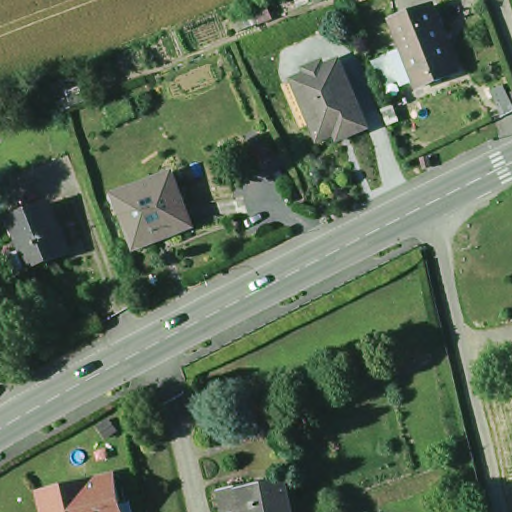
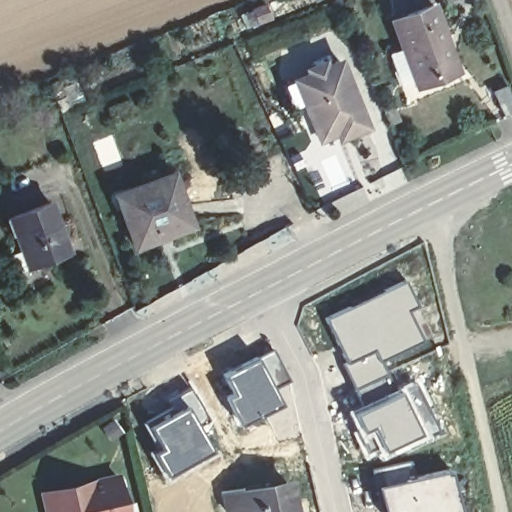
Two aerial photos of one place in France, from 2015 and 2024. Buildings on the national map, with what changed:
unchanged [(450,44),(462,77),(446,83),(443,76),(423,83),(401,21),(443,5),(457,42),(450,44)]
unchanged [(365,122),(351,128),(348,122),(318,134),(295,72),(340,55),(365,122)]
unchanged [(500,112),(488,86),(502,79),(512,100),(512,107),(500,112)]
unchanged [(113,121),(108,108),(128,99),(134,112),(113,121)]
unchanged [(165,241),(142,249),(122,196),(177,173),(197,223),(163,237),(165,241)]
unchanged [(60,204),(66,222),(62,223),(68,236),(72,238),(77,255),(37,270),(25,238),(29,237),(22,218),(60,204)]
new [(403,278),(417,304),(408,310),(422,339),(380,362),(387,379),(356,395),(322,318),(403,278)]
new [(272,348),(288,379),(275,387),(282,404),(240,425),(225,397),(232,392),(222,375),(272,348)]
new [(362,399),(415,376),(437,430),(395,449),(365,459),(343,409),(362,399)]
new [(183,405),(176,394),(190,385),(210,417),(199,425),(214,449),(165,479),(149,453),(158,446),(147,427),(183,405)]
new [(460,512),(383,512),(375,485),(370,469),(410,458),(415,474),(450,466),(460,512)]
unchanged [(43,490),(53,488),(117,477),(123,500),(126,512),(48,512),(43,490)]
unchanged [(232,495),(262,489),(267,491),(297,485),(302,512),(250,512),(250,511),(247,512),(235,512),(232,495)]

